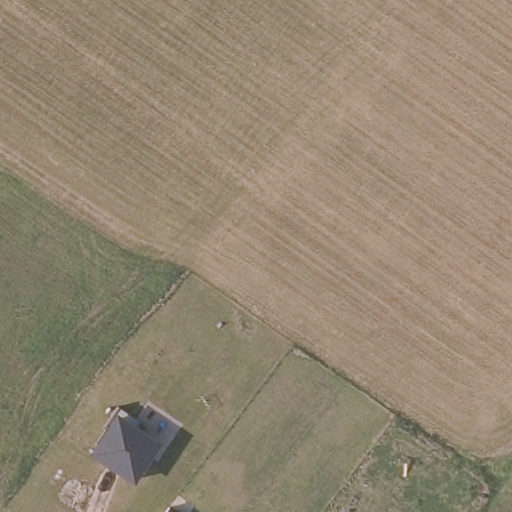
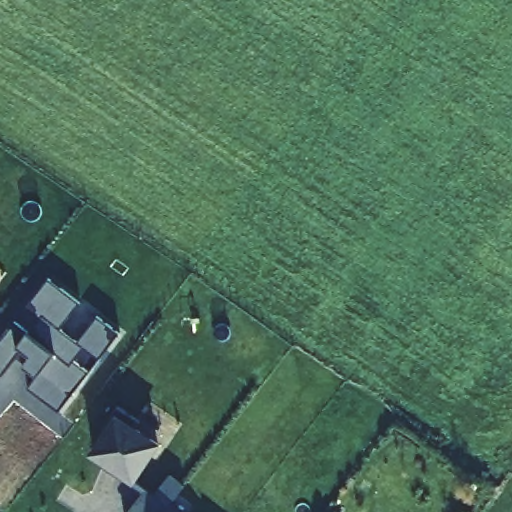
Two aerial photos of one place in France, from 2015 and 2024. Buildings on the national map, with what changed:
new [(99,360),(84,348),(75,360),(90,372),(59,412),(28,387),(37,376),(23,365),(30,356),(23,351),(0,379),(0,339),(15,321),(31,333),(42,321),(25,307),(49,277),(81,303),(61,328),(77,341),(98,316),(120,333),(99,360)]
new [(81,303),(98,316),(77,341),(61,328),(81,303)]
unchanged [(162,438),(132,482),(89,454),(118,411),(162,438)]
new [(167,509),(164,512),(127,512),(143,491),(167,509)]
unchanged [(167,512),(172,506),(178,512),(167,512)]

